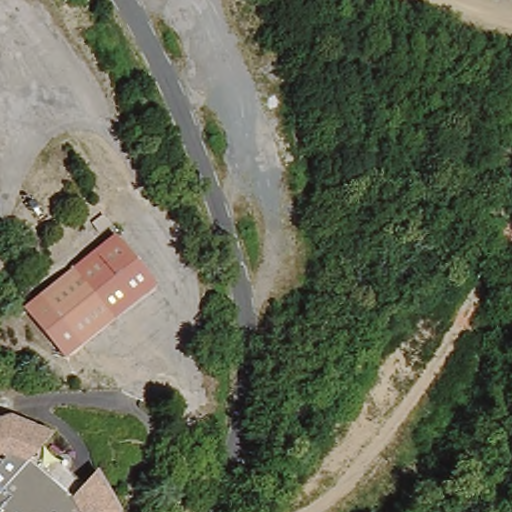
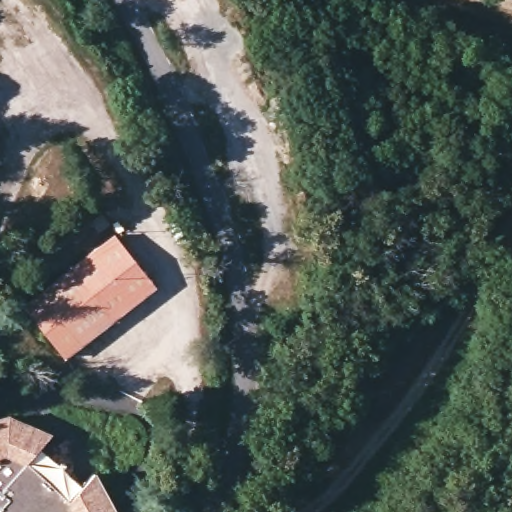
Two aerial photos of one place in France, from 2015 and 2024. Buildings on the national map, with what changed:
unchanged [(116,231),(156,291),(109,320),(71,268),(116,231)]
unchanged [(77,344),(40,292),(71,268),(109,320),(77,344)]
unchanged [(9,414),(52,432),(40,444),(84,483),(95,469),(118,512),(0,512),(0,417),(9,414)]

